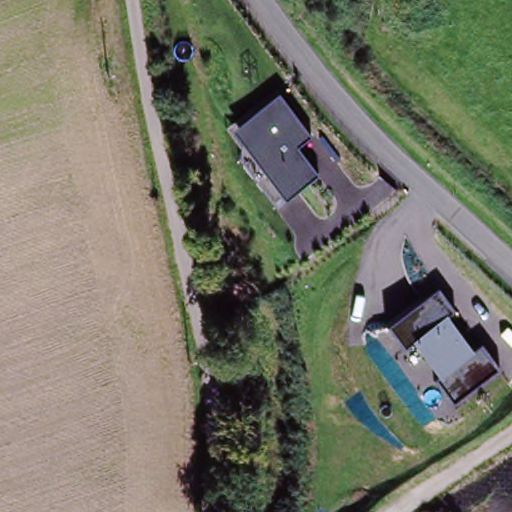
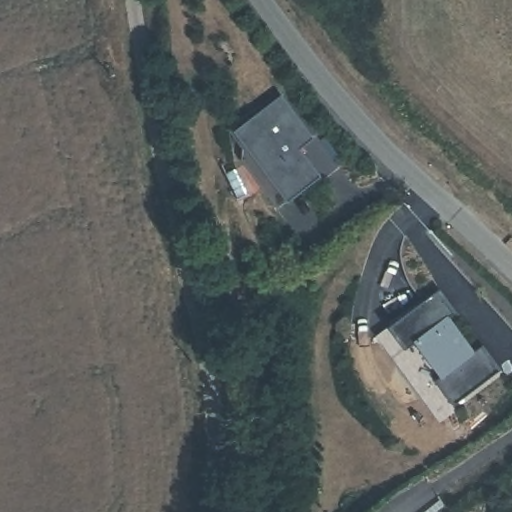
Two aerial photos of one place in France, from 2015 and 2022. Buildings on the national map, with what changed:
unchanged [(277,205),(239,161),(240,149),(226,128),(234,121),(238,126),(280,95),(311,138),(299,148),(318,175),(285,200),(277,205)]
unchanged [(436,380),(437,378),(413,343),(406,348),(390,326),(439,290),(453,311),(449,314),(473,351),(483,345),(499,371),(453,403),(436,380)]

